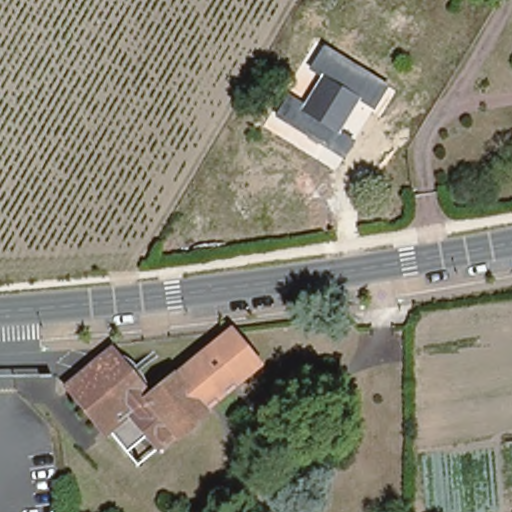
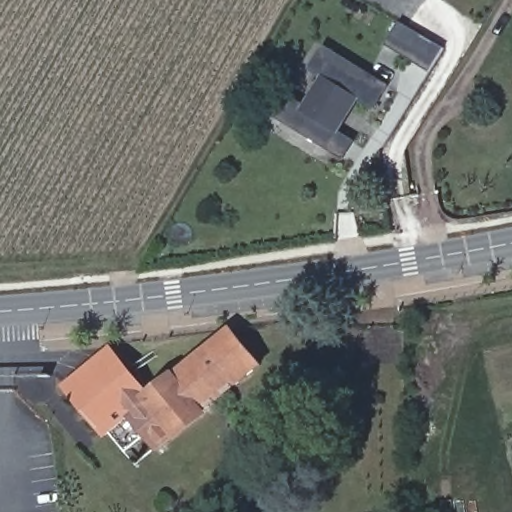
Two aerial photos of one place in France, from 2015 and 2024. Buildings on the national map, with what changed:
new [(393,18),(446,49),(431,72),(379,41),(393,18)]
unchanged [(374,111),(359,102),(340,131),(356,141),(345,159),(272,116),(287,92),(303,102),(320,75),(306,67),(322,44),(390,85),(374,111)]
unchanged [(218,343),(233,329),(263,365),(245,380),(218,343)]
unchanged [(128,420),(111,431),(70,382),(117,347),(156,391),(218,343),(245,380),(165,445),(144,420),(134,427),(128,420)]

